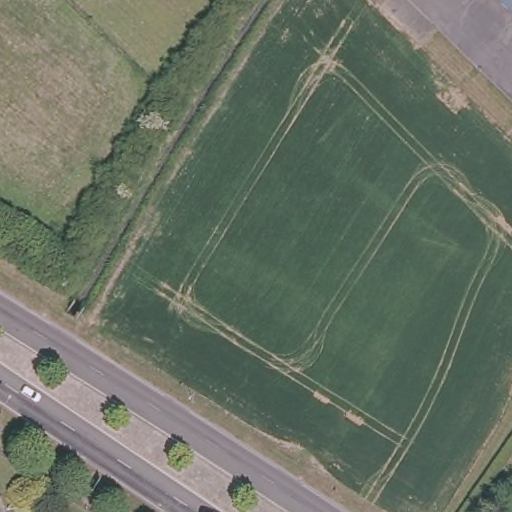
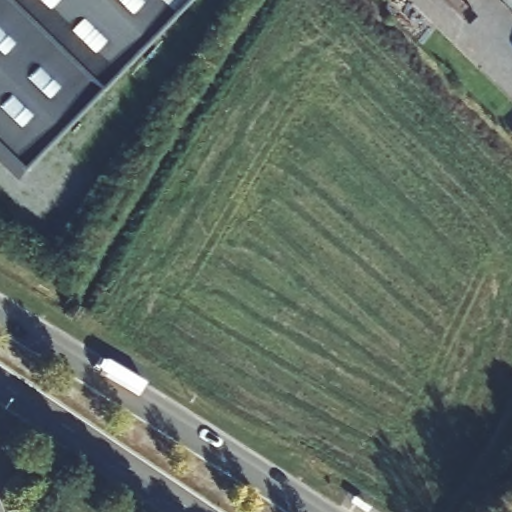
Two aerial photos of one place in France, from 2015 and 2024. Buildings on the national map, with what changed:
new [(20,178),(0,159),(0,0),(190,0),(20,178)]

